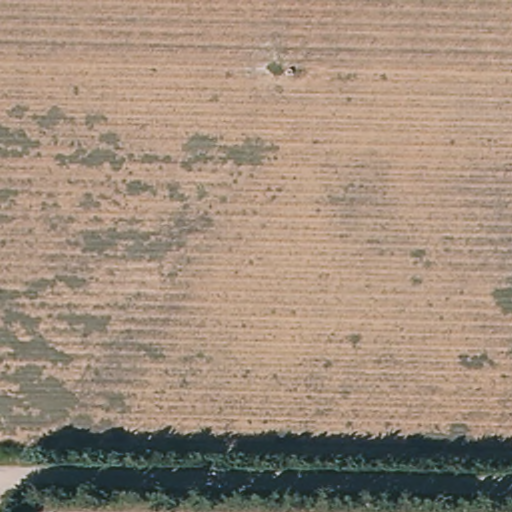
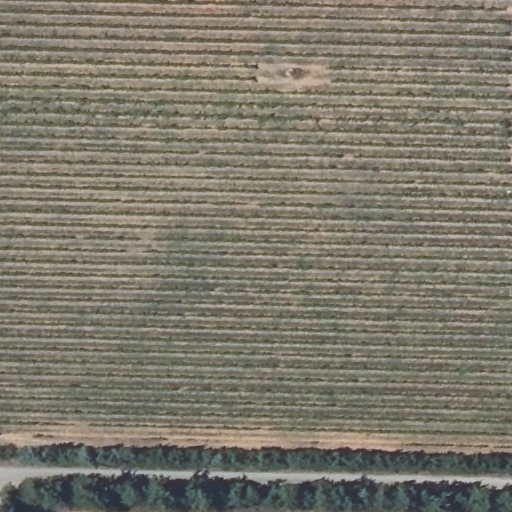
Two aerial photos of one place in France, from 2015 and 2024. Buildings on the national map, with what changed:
[]

